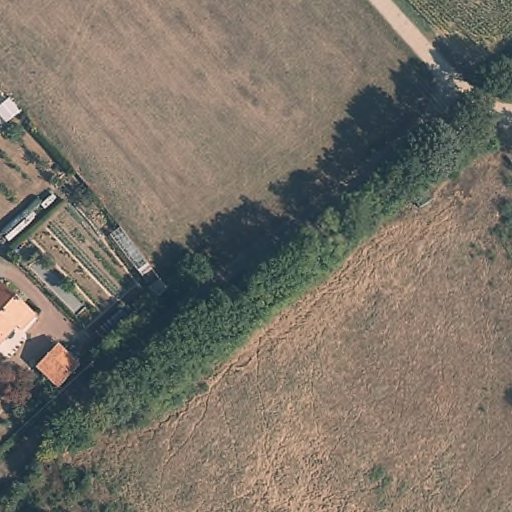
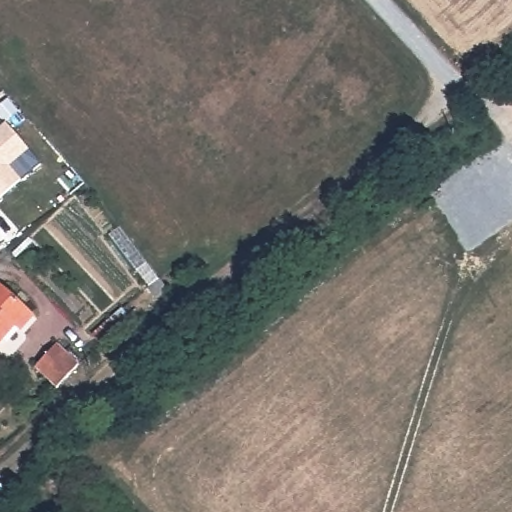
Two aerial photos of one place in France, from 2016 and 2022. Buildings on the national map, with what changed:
new [(6,122),(30,149),(10,166),(22,179),(0,198),(0,126),(6,122)]
unchanged [(167,289),(156,297),(149,287),(160,279),(167,289)]
unchanged [(33,316),(21,330),(16,326),(0,343),(0,287),(33,316)]
unchanged [(121,310),(130,320),(101,344),(92,334),(121,310)]
unchanged [(79,365),(57,388),(35,367),(57,345),(79,365)]

